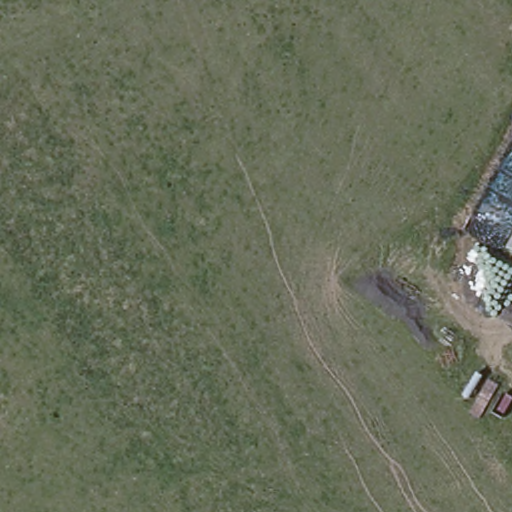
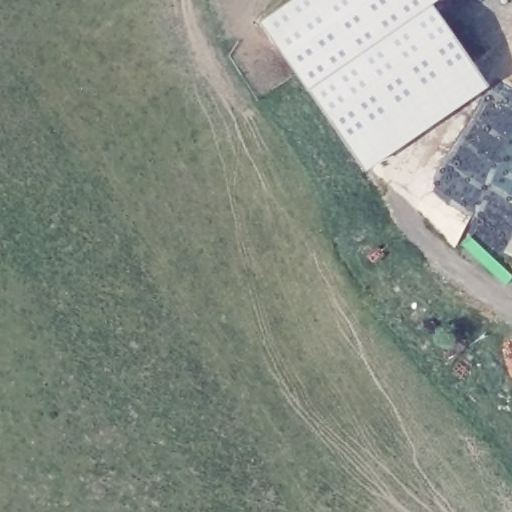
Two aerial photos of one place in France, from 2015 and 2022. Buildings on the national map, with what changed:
new [(306,88),(259,20),(289,0),(433,0),(430,2),(485,84),(362,169),(306,88)]
unchanged [(506,251),(512,240),(512,254),(506,251)]

